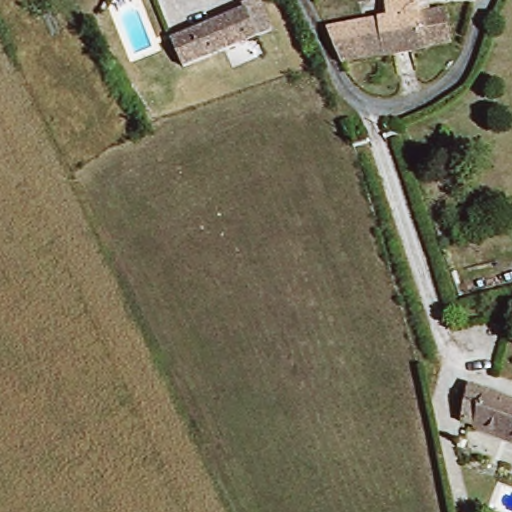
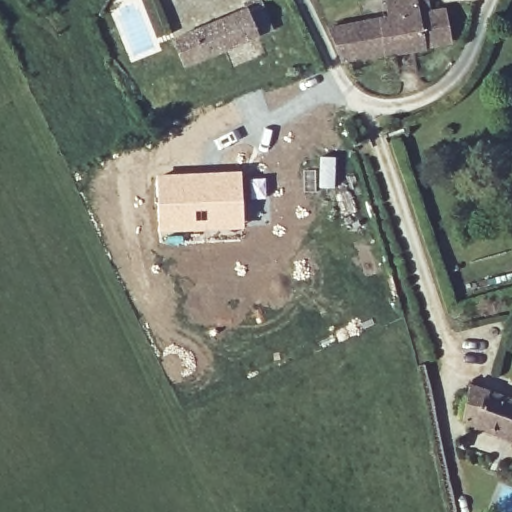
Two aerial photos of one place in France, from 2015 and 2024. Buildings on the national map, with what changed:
unchanged [(259,0),(273,25),(189,69),(175,44),(244,8),(243,3),(249,0),(259,0)]
unchanged [(342,65),(337,48),(330,28),(391,13),(388,0),(418,0),(421,14),(446,10),(451,38),(452,45),(438,47),(427,49),(349,63),(342,65)]
new [(319,155),(335,156),(334,188),(318,188),(319,155)]
new [(242,170),(244,229),(159,234),(156,174),(242,170)]
unchanged [(512,397),(512,440),(461,422),(472,384),(512,397)]

